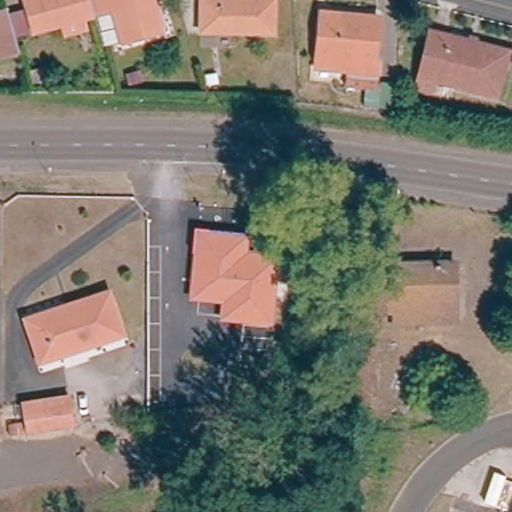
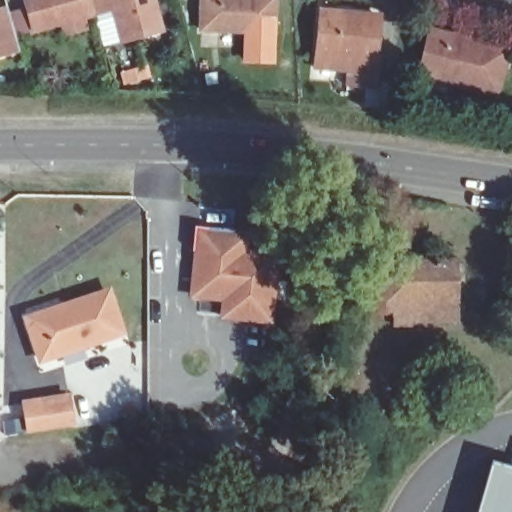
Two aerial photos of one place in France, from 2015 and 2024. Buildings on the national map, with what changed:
unchanged [(39,31),(30,0),(94,0),(98,13),(39,31)]
unchanged [(168,29),(109,47),(108,47),(98,13),(94,0),(159,0),(168,29)]
unchanged [(205,40),(203,3),(254,0),(272,0),(274,35),(205,40)]
unchanged [(16,46),(0,51),(0,8),(5,7),(16,46)]
unchanged [(345,90),(346,71),(315,70),(315,57),(317,13),(372,15),(372,81),(394,82),(394,111),(372,110),(372,91),(345,90)]
unchanged [(428,33),(501,50),(509,52),(497,100),(434,85),(431,95),(414,91),(428,33)]
unchanged [(194,227),(251,232),(250,249),(280,253),(273,325),(219,321),(221,303),(189,299),(194,227)]
unchanged [(453,268),(455,324),(396,328),(395,320),(361,320),(358,270),(453,268)]
unchanged [(41,361),(27,320),(66,307),(106,292),(109,301),(121,333),(41,361)]
unchanged [(377,345),(361,413),(339,409),(354,340),(377,345)]
unchanged [(461,370),(463,398),(420,400),(418,372),(461,370)]
unchanged [(30,433),(25,403),(68,396),(73,425),(30,433)]
new [(512,467),(512,512),(475,512),(490,461),(512,467)]

